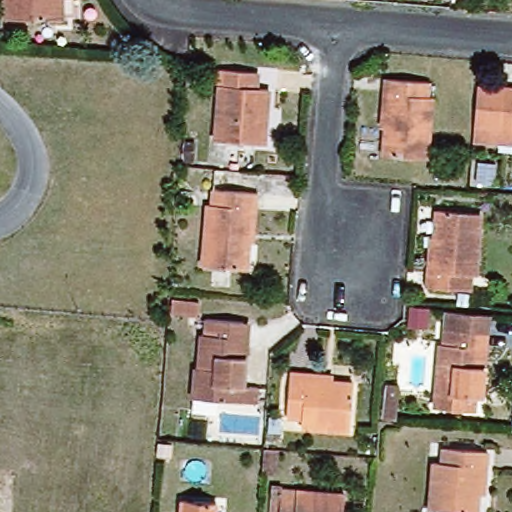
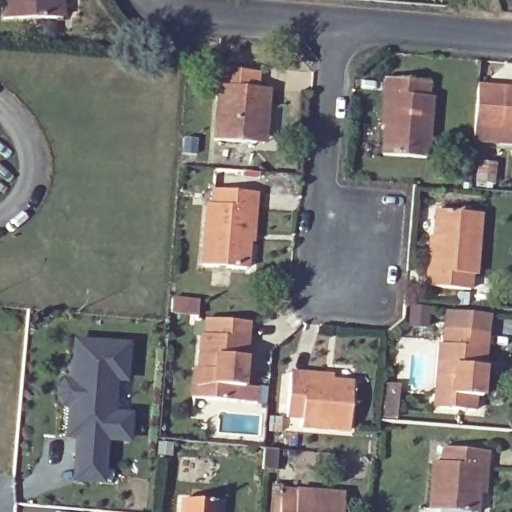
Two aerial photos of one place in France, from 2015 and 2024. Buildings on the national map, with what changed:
unchanged [(3,12),(3,0),(61,0),(61,12),(3,12)]
unchanged [(340,0),(359,0),(359,2),(340,0)]
unchanged [(256,91),(268,92),(264,145),(215,141),(221,73),(257,76),(256,91)]
unchanged [(430,96),(435,97),(428,157),(385,153),(392,77),(432,81),(430,96)]
unchanged [(512,92),(512,144),(473,141),(474,128),(478,89),(512,92)]
unchanged [(248,269),(207,266),(213,205),(217,205),(221,171),(256,175),(248,269)]
unchanged [(472,281),(468,281),(467,293),(428,291),(435,214),(478,217),(472,281)]
unchanged [(484,366),(482,395),(475,395),(475,407),(450,406),(453,381),(435,378),(437,342),(444,342),(445,327),(446,327),(447,315),(489,318),(488,331),(480,331),(478,366),(484,366)]
unchanged [(246,325),(244,360),(250,360),(248,387),(240,387),(240,402),(195,397),(195,370),(201,371),(205,337),(209,337),(211,320),(246,325)]
new [(64,437),(72,342),(125,347),(122,382),(111,382),(109,417),(126,418),(124,443),(106,442),(102,441),(100,458),(98,484),(70,482),(72,456),(74,438),(64,437)]
unchanged [(351,376),(348,423),(286,417),(290,382),(305,382),(306,372),(351,376)]
unchanged [(489,452),(484,512),(457,512),(437,511),(441,462),(447,462),(448,448),(489,452)]
unchanged [(279,451),(277,472),(263,472),(265,450),(279,451)]
unchanged [(336,492),(335,512),(273,512),(275,495),(290,497),(290,488),(336,492)]
unchanged [(212,512),(179,512),(180,498),(212,500),(212,512)]

